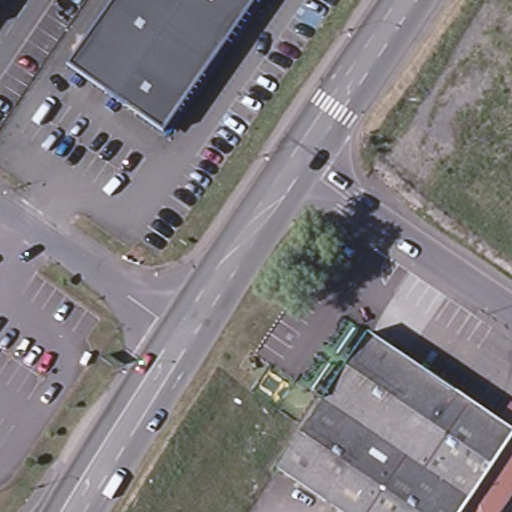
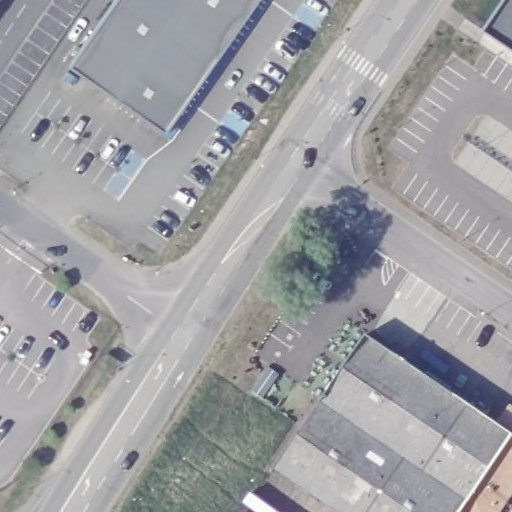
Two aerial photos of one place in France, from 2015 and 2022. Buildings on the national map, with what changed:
unchanged [(258,0),(163,131),(67,61),(112,0),(258,0)]
new [(508,0),(512,0),(512,47),(488,30),(508,0)]
unchanged [(497,422),(509,405),(512,407),(512,487),(495,512),(469,512),(463,508),(460,512),(347,512),(278,465),(367,333),(497,422)]

